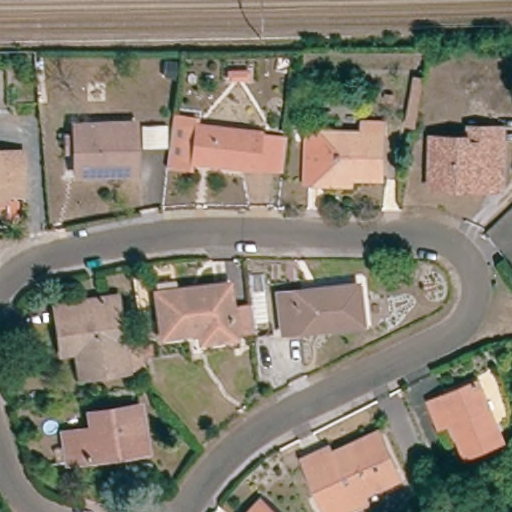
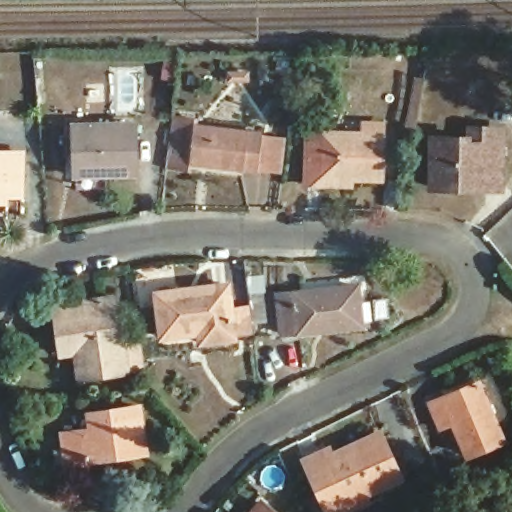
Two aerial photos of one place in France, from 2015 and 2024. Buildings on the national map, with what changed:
unchanged [(174,168),(173,177),(155,174),(161,124),(179,125),(179,131),(276,143),(271,180),(174,168)]
unchanged [(307,185),(307,164),(307,136),(364,136),(364,127),(379,127),(379,177),(350,177),(350,185),(307,185)]
unchanged [(134,129),(135,178),(74,180),(72,131),(134,129)]
unchanged [(430,192),(430,144),(464,144),(464,134),(498,134),(498,149),(498,192),(463,192),(450,192),(430,192)]
unchanged [(20,203),(3,202),(3,209),(0,209),(0,158),(20,159),(20,203)]
unchanged [(221,286),(227,340),(194,344),(193,334),(156,338),(151,295),(221,286)]
unchanged [(354,291),(358,327),(335,329),(335,333),(283,340),(278,300),(354,291)]
unchanged [(65,345),(60,311),(118,303),(126,350),(146,347),(149,373),(85,382),(81,354),(66,356),(65,345)]
unchanged [(480,386),(505,447),(468,462),(455,430),(443,434),(431,406),(480,386)]
unchanged [(144,412),(150,457),(71,469),(66,438),(94,434),(91,420),(144,412)]
unchanged [(347,512),(325,512),(305,468),(331,457),(333,461),(380,440),(398,481),(362,498),(365,504),(347,512)]
unchanged [(255,507),(260,512),(250,512),(255,507)]

